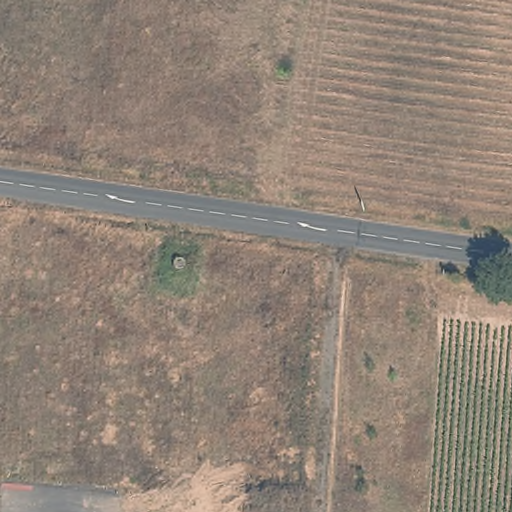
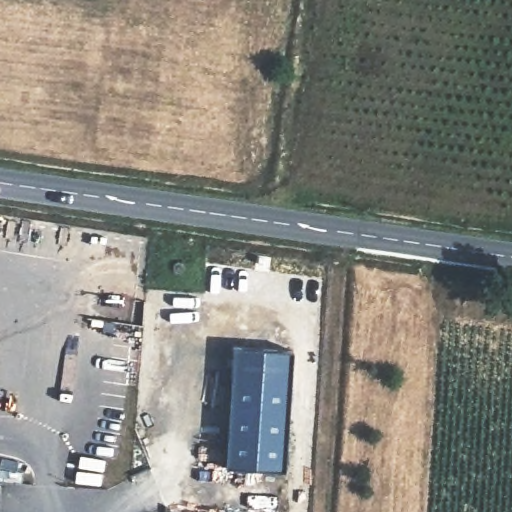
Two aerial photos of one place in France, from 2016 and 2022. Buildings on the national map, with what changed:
unchanged [(175,258),(178,258),(181,260),(182,262),(182,264),(179,266),(175,266),(173,263),(173,260),(175,258)]
new [(233,346),(292,348),(284,469),(224,467),(233,346)]

